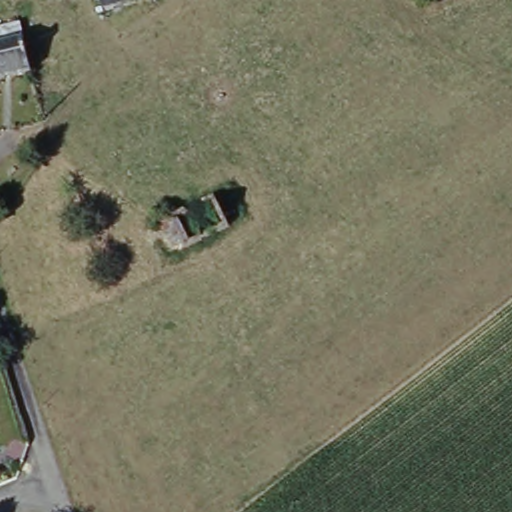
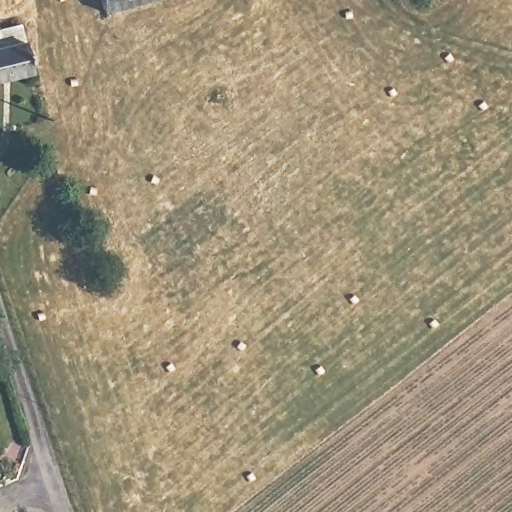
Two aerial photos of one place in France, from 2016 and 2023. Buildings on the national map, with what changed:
unchanged [(106,9),(104,0),(141,0),(106,9)]
unchanged [(28,76),(0,83),(0,51),(21,47),(28,76)]

